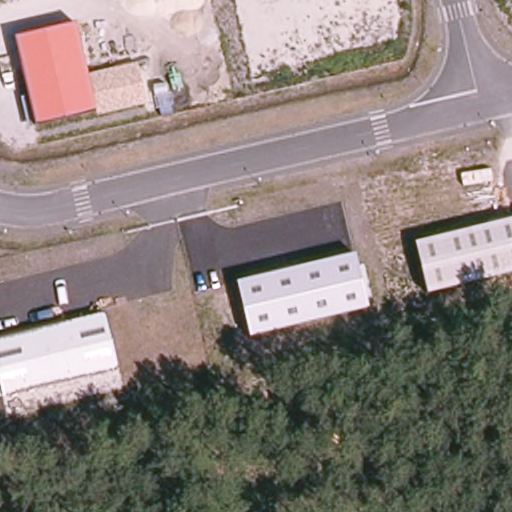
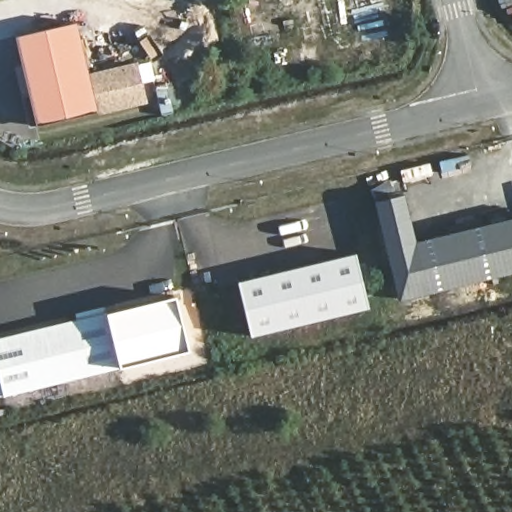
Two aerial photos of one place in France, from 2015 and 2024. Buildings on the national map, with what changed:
unchanged [(37,126),(29,126),(21,98),(29,95),(14,36),(77,22),(89,73),(138,61),(149,104),(100,116),(99,111),(37,126)]
unchanged [(415,242),(512,218),(512,273),(428,294),(415,242)]
unchanged [(369,308),(248,337),(236,282),(357,254),(369,308)]
new [(117,367),(105,314),(175,297),(187,351),(117,367)]
unchanged [(118,369),(0,397),(0,338),(105,314),(118,369)]

